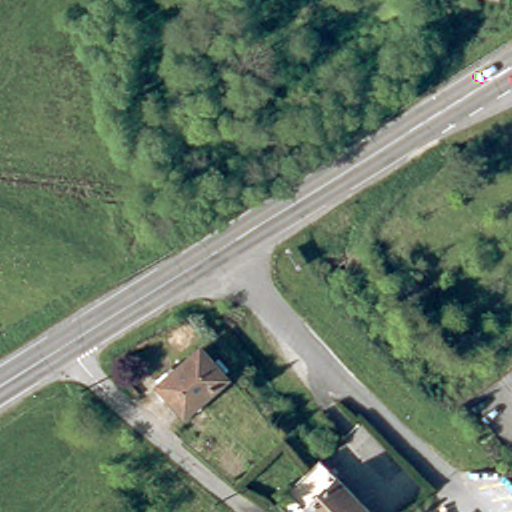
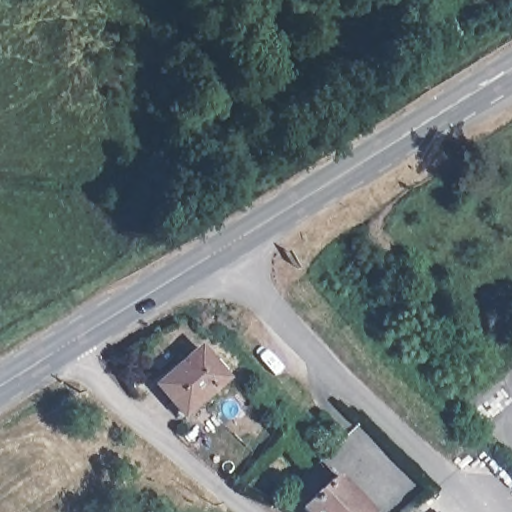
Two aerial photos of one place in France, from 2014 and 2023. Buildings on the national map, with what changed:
unchanged [(150,379),(196,348),(222,376),(174,410),(150,379)]
unchanged [(287,512),(278,502),(305,479),(329,457),(342,474),(377,509),(373,512),(287,512)]

